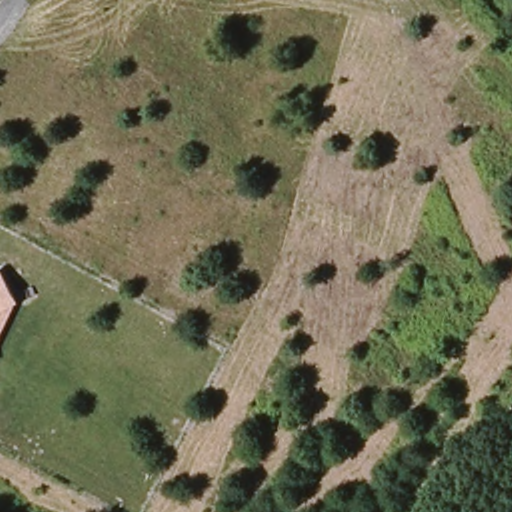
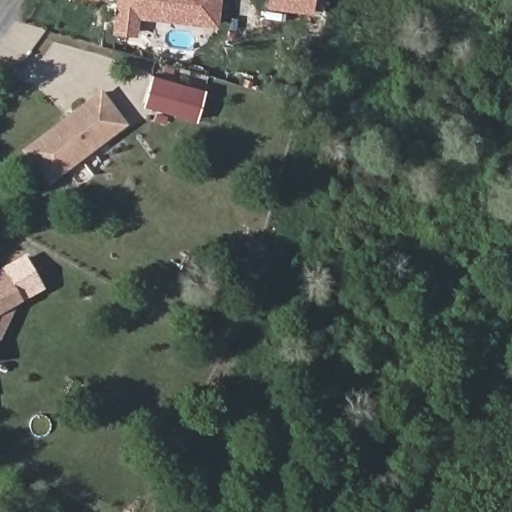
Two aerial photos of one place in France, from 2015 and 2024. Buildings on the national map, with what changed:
new [(111,34),(116,0),(221,0),(217,28),(139,19),(137,37),(111,34)]
new [(315,0),(315,10),(267,6),(268,0),(315,0)]
new [(143,106),(151,75),(205,90),(196,121),(143,106)]
new [(126,126),(46,186),(20,150),(100,90),(126,126)]
unchanged [(0,340),(0,270),(0,269),(19,304),(0,340)]

